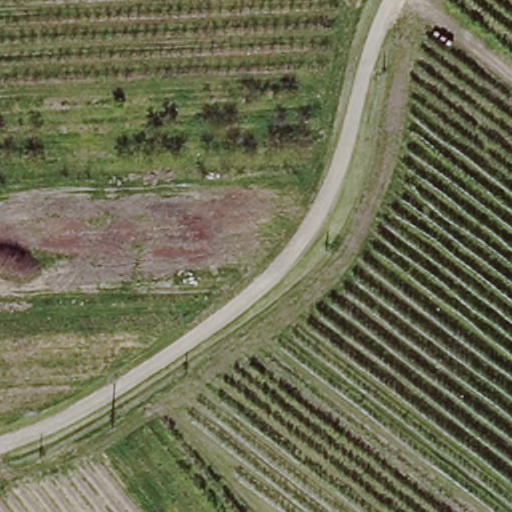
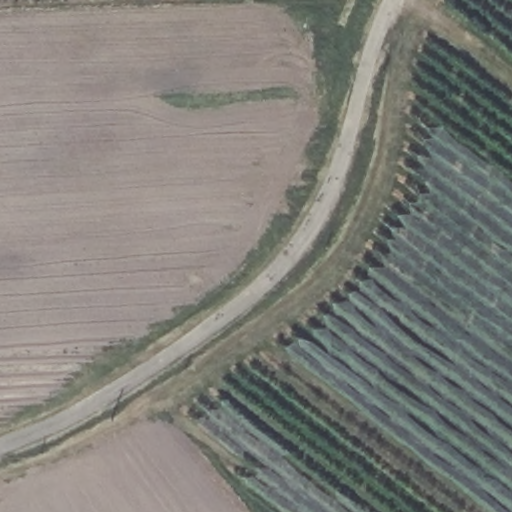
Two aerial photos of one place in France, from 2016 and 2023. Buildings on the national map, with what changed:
[]

